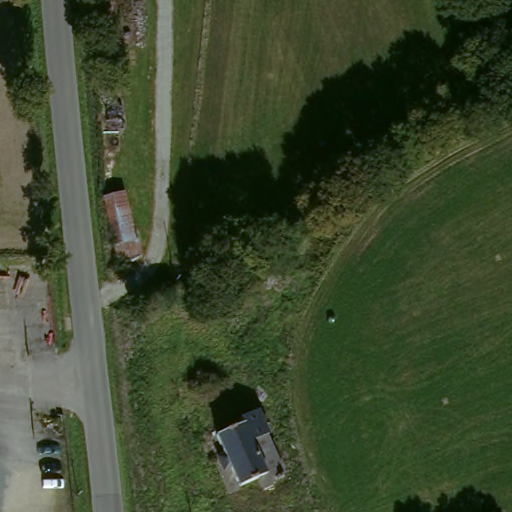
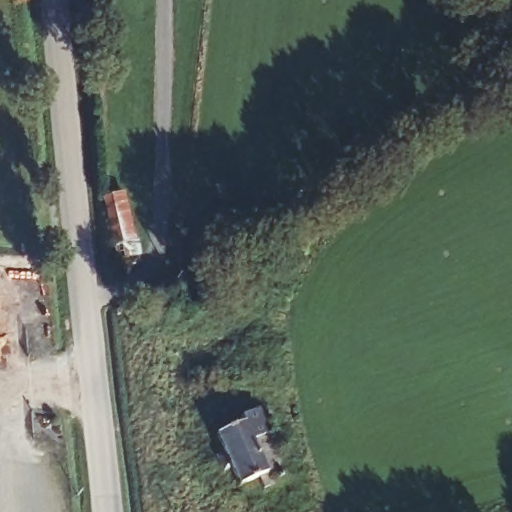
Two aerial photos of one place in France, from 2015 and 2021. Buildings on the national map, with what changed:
unchanged [(144,247),(115,257),(105,205),(127,198),(144,247)]
unchanged [(281,247),(249,268),(235,248),(268,227),(281,247)]
unchanged [(263,490),(256,478),(240,488),(211,442),(236,426),(246,441),(263,431),(285,468),(270,477),(273,482),(263,490)]

